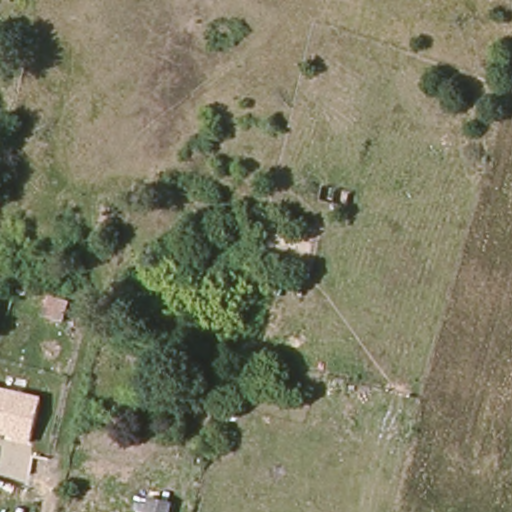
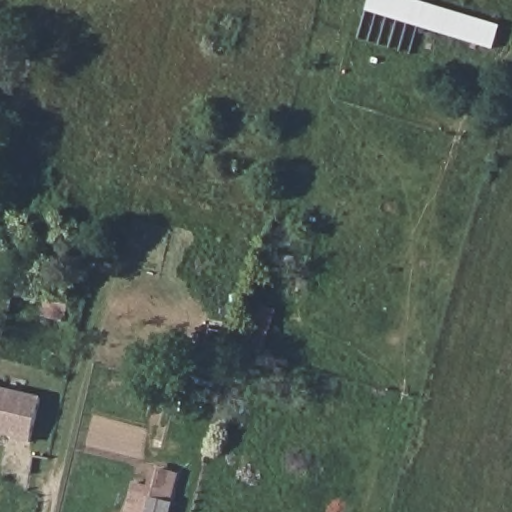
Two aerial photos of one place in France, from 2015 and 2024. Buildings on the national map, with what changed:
new [(502,26),(495,49),(368,11),(371,0),(417,0),(502,26)]
unchanged [(32,446),(12,441),(14,437),(0,434),(0,389),(43,398),(32,446)]
unchanged [(148,512),(151,499),(168,503),(166,512),(148,512)]

